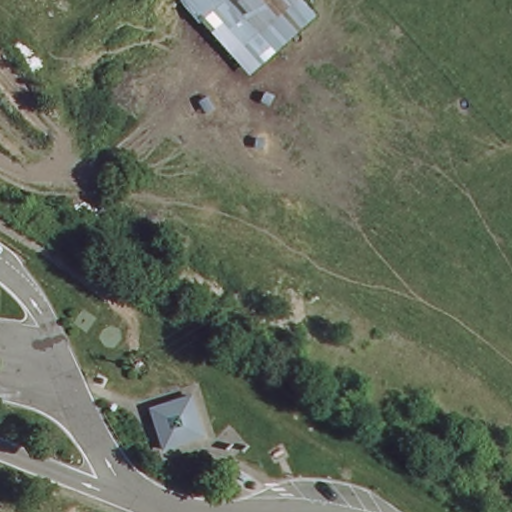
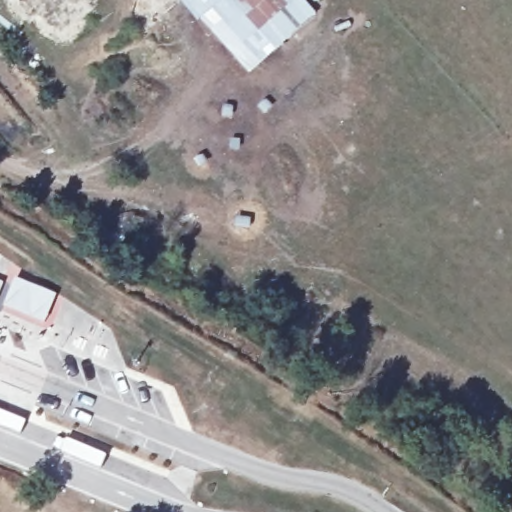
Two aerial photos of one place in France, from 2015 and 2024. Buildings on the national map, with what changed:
unchanged [(247,78),(183,0),(302,0),(318,20),(247,78)]
new [(16,278),(58,295),(45,325),(4,308),(16,278)]
new [(4,282),(0,293),(0,281),(4,282)]
demolished [(162,451),(151,409),(188,396),(202,437),(162,451)]

